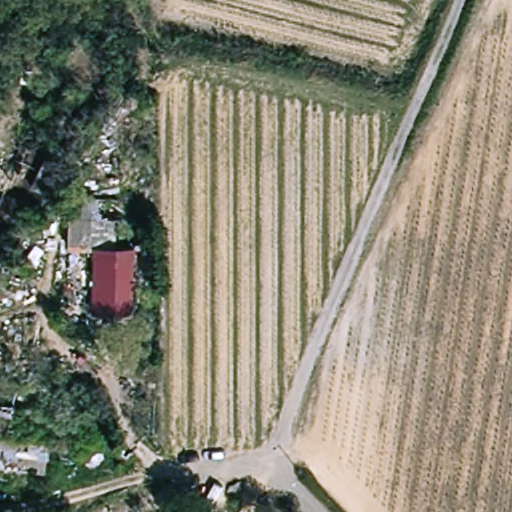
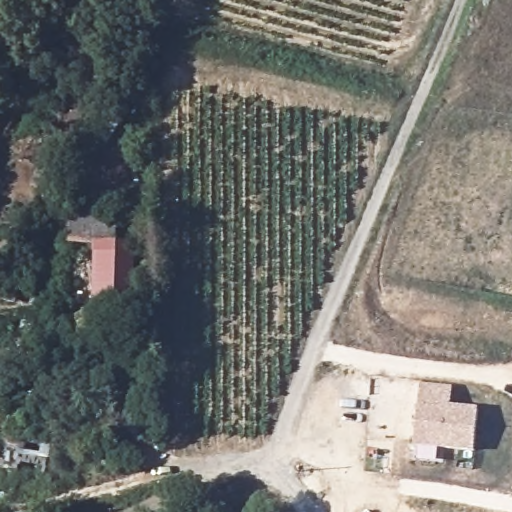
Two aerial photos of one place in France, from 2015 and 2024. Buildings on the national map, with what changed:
unchanged [(90,291),(93,239),(66,238),(68,210),(113,212),(112,240),(130,241),(127,293),(90,291)]
new [(479,408),(474,450),(414,445),(420,384),(452,387),(450,406),(479,408)]

